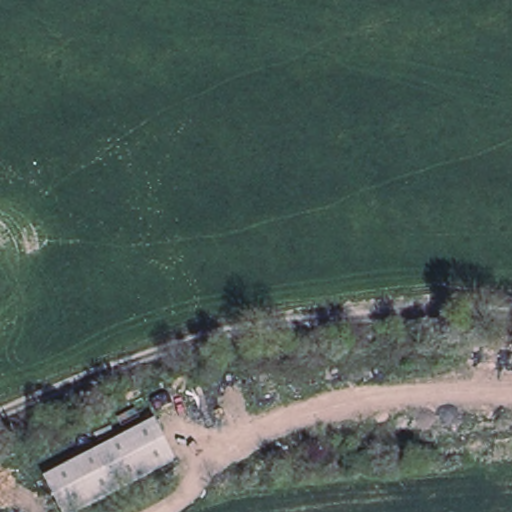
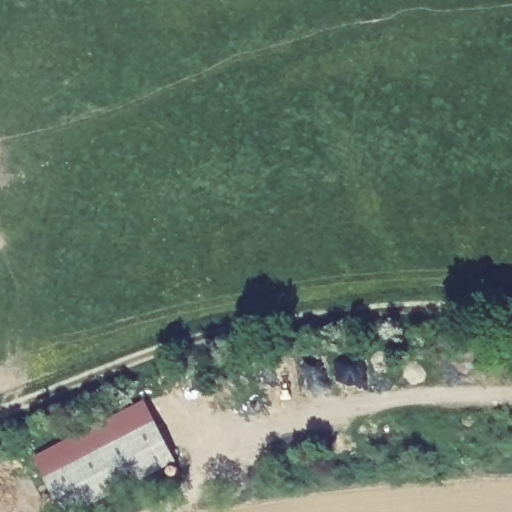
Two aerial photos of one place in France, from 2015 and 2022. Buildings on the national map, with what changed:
unchanged [(155,419),(178,460),(78,512),(64,512),(43,476),(155,419)]

